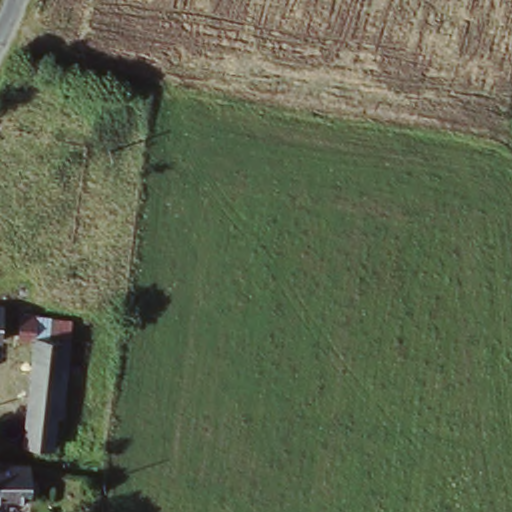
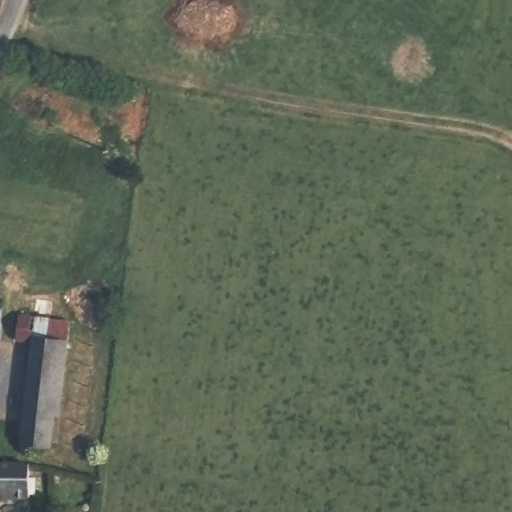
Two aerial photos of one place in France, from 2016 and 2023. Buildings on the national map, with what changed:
unchanged [(0,340),(0,307),(3,307),(0,340)]
unchanged [(51,449),(22,444),(35,345),(16,342),(20,316),(71,322),(70,340),(61,418),(56,417),(51,446),(51,449)]
unchanged [(56,417),(61,418),(70,340),(90,343),(78,449),(51,446),(56,417)]
unchanged [(0,493),(0,461),(35,461),(35,494),(0,493)]

